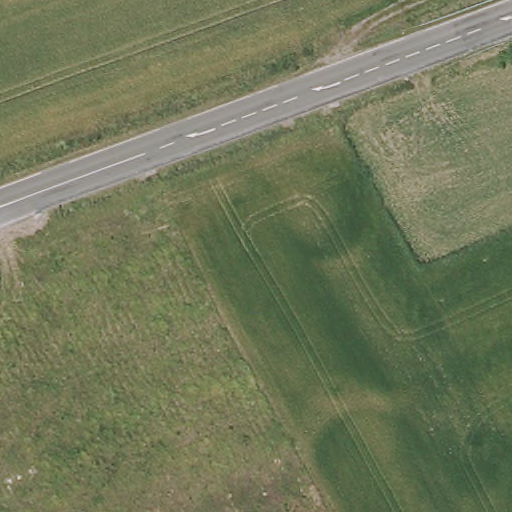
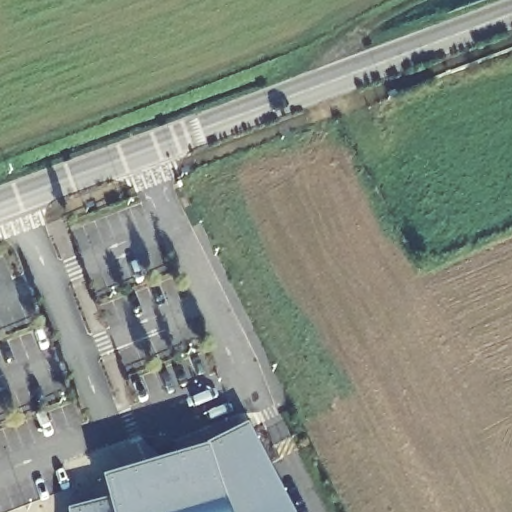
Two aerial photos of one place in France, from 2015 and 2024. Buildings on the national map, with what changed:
new [(269,470),(291,512),(71,512),(71,506),(105,498),(101,470),(207,437),(249,421),(269,470)]

